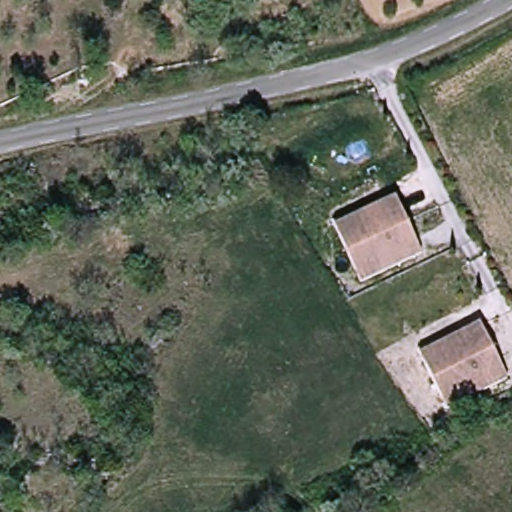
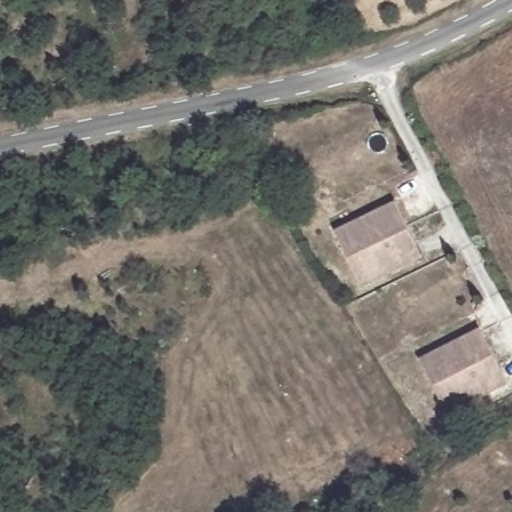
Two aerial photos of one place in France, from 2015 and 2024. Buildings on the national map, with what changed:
unchanged [(428,259),(369,288),(346,243),(341,233),(387,213),(403,205),(428,259)]
unchanged [(509,386),(450,417),(428,373),(423,364),(466,341),(482,332),(509,386)]

